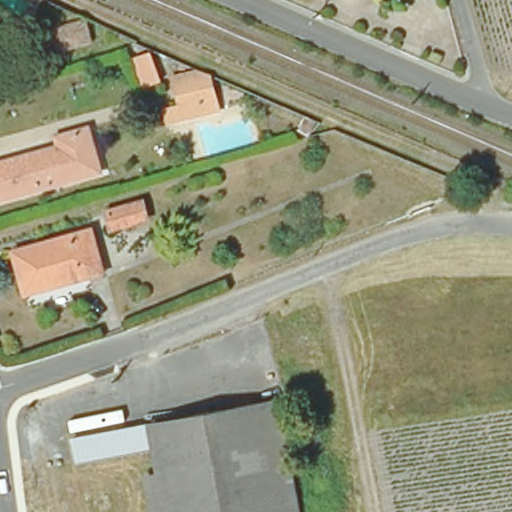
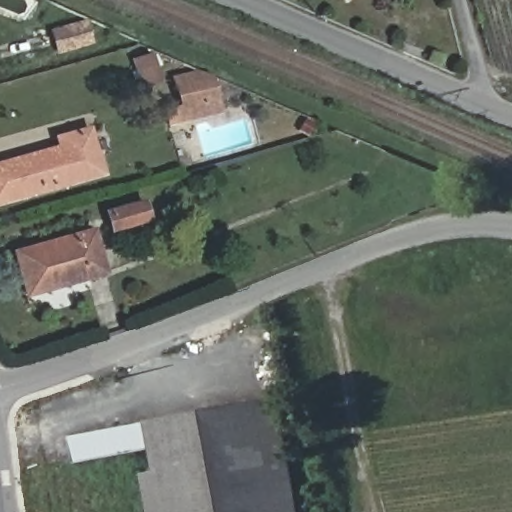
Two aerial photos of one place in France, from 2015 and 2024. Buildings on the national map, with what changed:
unchanged [(86,25),(92,44),(60,55),(53,36),(86,25)]
unchanged [(220,114),(171,127),(167,112),(180,109),(175,90),(173,83),(172,80),(197,74),(198,76),(200,83),(209,80),(220,114)]
unchanged [(0,202),(0,167),(62,150),(59,139),(88,130),(102,174),(0,202)]
unchanged [(147,206),(151,221),(115,232),(111,216),(147,206)]
unchanged [(27,297),(16,255),(94,234),(107,275),(27,297)]
unchanged [(279,400),(300,512),(279,512),(258,403),(279,400)]
unchanged [(155,422),(258,403),(279,512),(171,512),(164,472),(155,422)]
unchanged [(151,449),(76,462),(71,438),(147,425),(151,449)]
unchanged [(171,512),(152,512),(145,475),(164,472),(171,512)]

